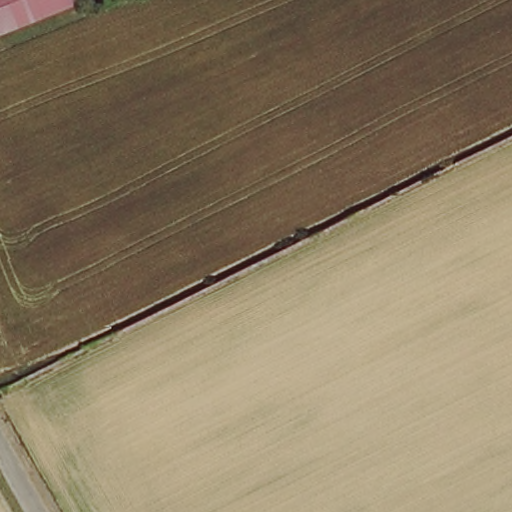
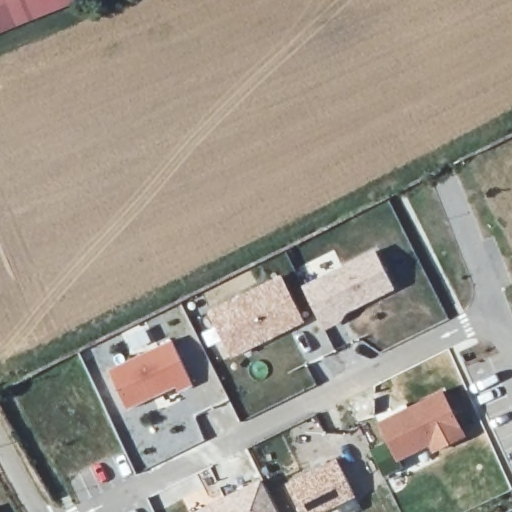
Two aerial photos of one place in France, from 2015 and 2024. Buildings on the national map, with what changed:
unchanged [(0,17),(0,0),(74,0),(77,5),(6,32),(0,17)]
unchanged [(0,34),(0,17),(6,32),(0,34)]
new [(375,252),(396,291),(341,320),(344,324),(324,333),(302,288),(375,252)]
new [(282,277),(304,325),(230,362),(207,313),(282,277)]
new [(171,342),(191,387),(177,394),(175,390),(126,414),(107,371),(171,342)]
new [(442,388),(466,435),(432,453),(428,446),(397,461),(377,420),(442,388)]
new [(355,498),(328,512),(297,512),(286,487),(338,461),(355,498)]
new [(278,512),(191,512),(260,476),(278,512)]

